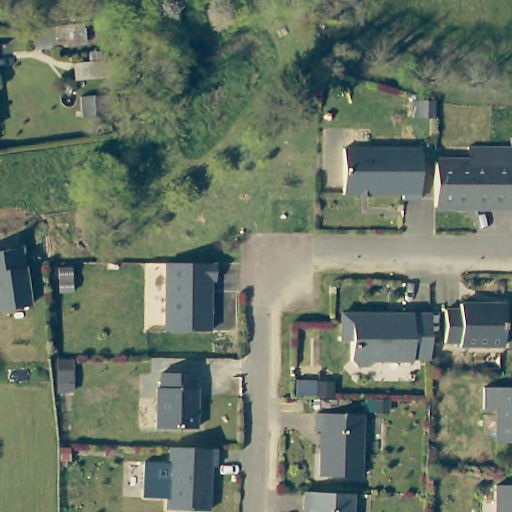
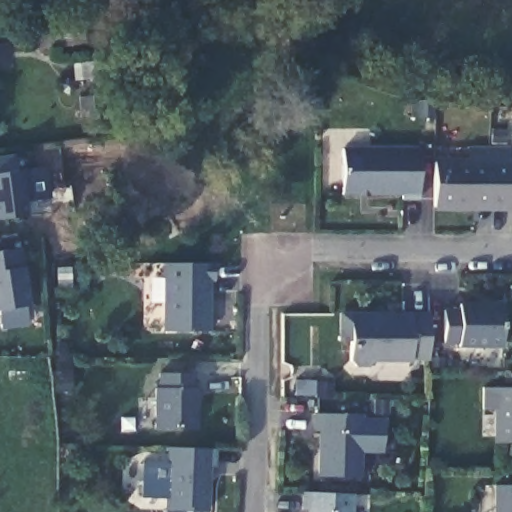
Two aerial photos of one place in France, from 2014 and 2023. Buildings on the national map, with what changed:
unchanged [(83,36),(30,43),(28,21),(79,16),(83,36)]
unchanged [(397,193),(396,186),(337,184),(338,140),(416,142),(414,192),(397,193)]
unchanged [(429,157),(465,158),(464,144),(475,144),(497,145),(506,145),(507,159),(512,160),(512,205),(501,204),(468,203),(428,201),(429,157)]
new [(18,168),(26,166),(30,200),(27,201),(28,215),(0,217),(0,156),(14,154),(18,168)]
unchanged [(0,240),(22,239),(23,299),(0,298),(0,240)]
unchanged [(215,279),(210,279),(208,330),(164,328),(164,258),(215,259),(215,279)]
unchanged [(457,342),(456,338),(441,337),(443,305),(458,305),(459,297),(502,300),(501,344),(457,342)]
unchanged [(424,355),(408,355),(406,358),(368,356),(360,361),(352,360),(347,354),(346,335),(337,333),(338,306),(386,308),(386,311),(408,312),(408,309),(427,310),(424,355)]
unchanged [(159,426),(160,387),(164,387),(166,370),(197,372),(197,386),(201,387),(200,427),(159,426)]
unchanged [(499,443),(498,415),(485,416),(485,400),(484,389),(512,388),(512,443),(499,443)]
unchanged [(319,469),(322,425),(317,424),(316,407),(364,409),(362,472),(319,469)]
unchanged [(213,462),(206,462),(206,478),(209,478),(206,507),(165,504),(169,440),(216,443),(213,462)]
unchanged [(512,478),(512,512),(493,512),(495,477),(512,478)]
unchanged [(356,512),(316,512),(308,510),(309,491),(357,493),(356,512)]

